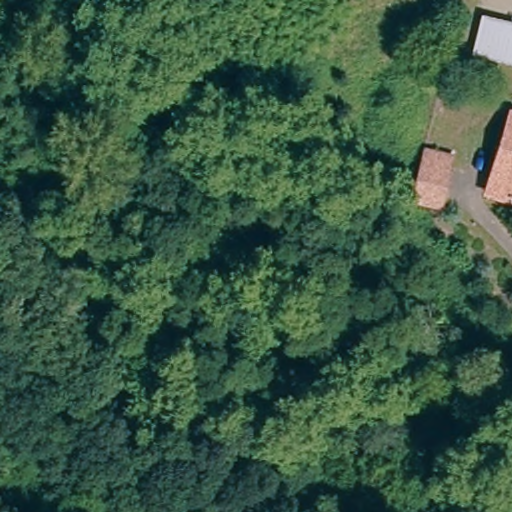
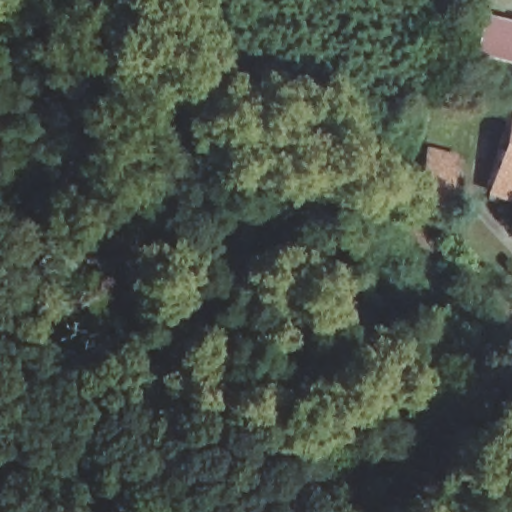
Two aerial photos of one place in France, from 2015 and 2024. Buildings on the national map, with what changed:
unchanged [(484,18),(512,25),(512,63),(475,54),(484,18)]
unchanged [(512,120),(512,201),(511,200),(489,194),(512,120)]
unchanged [(425,150),(453,157),(442,205),(413,199),(425,150)]

